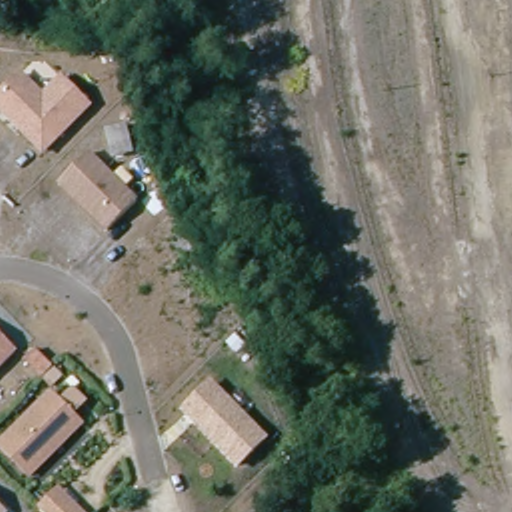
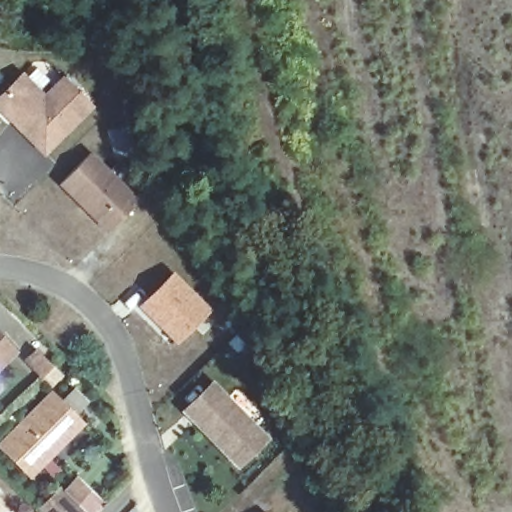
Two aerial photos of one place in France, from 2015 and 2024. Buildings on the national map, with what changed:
unchanged [(19,127),(22,124),(18,120),(13,121),(0,107),(0,99),(24,76),(45,99),(64,81),(90,108),(44,153),(19,127)]
unchanged [(107,131),(126,126),(132,150),(114,155),(107,131)]
unchanged [(106,226),(59,179),(89,148),(136,196),(106,226)]
new [(172,270),(211,309),(177,344),(137,305),(172,270)]
unchanged [(0,360),(0,342),(9,351),(0,360)]
unchanged [(40,372),(23,355),(33,344),(51,362),(40,372)]
unchanged [(184,409),(211,382),(265,436),(238,463),(184,409)]
unchanged [(0,443),(0,437),(49,389),(78,419),(27,470),(0,443)]
unchanged [(83,512),(45,512),(38,505),(57,485),(83,512)]
unchanged [(0,507),(1,508),(0,509),(0,507)]
new [(6,512),(0,512),(0,509),(1,508),(6,512)]

